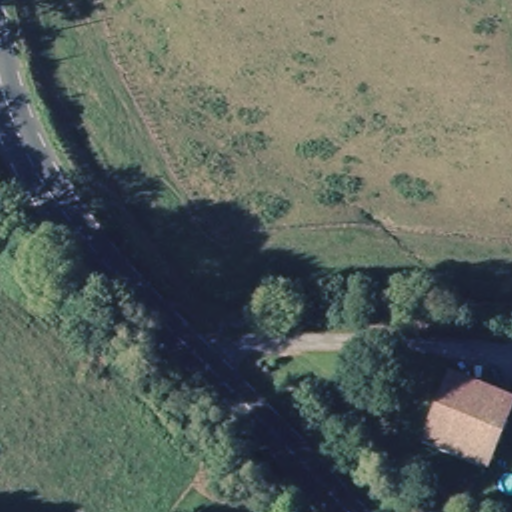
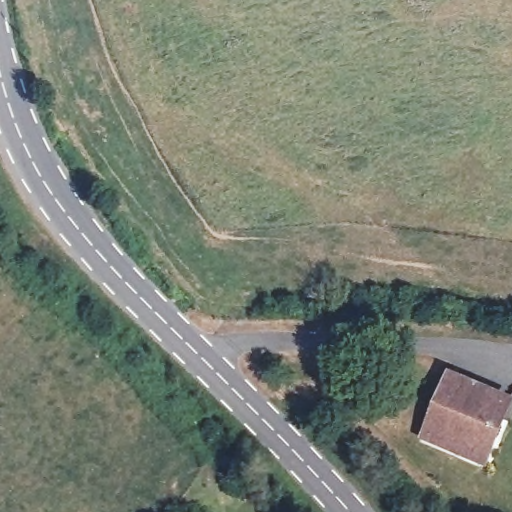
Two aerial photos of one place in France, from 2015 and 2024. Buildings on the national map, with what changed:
unchanged [(427,436),(458,377),(512,406),(512,412),(492,452),(484,467),(458,453),(427,436)]

